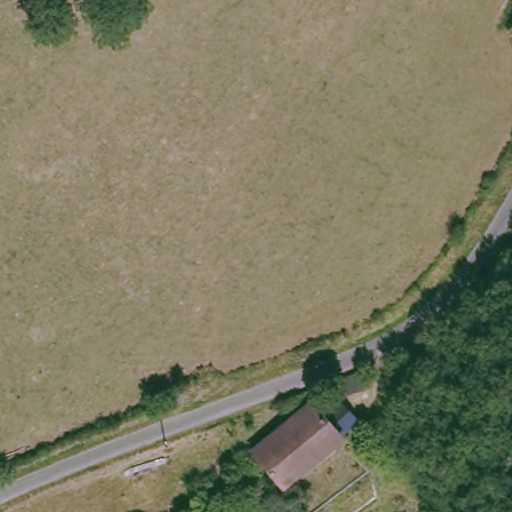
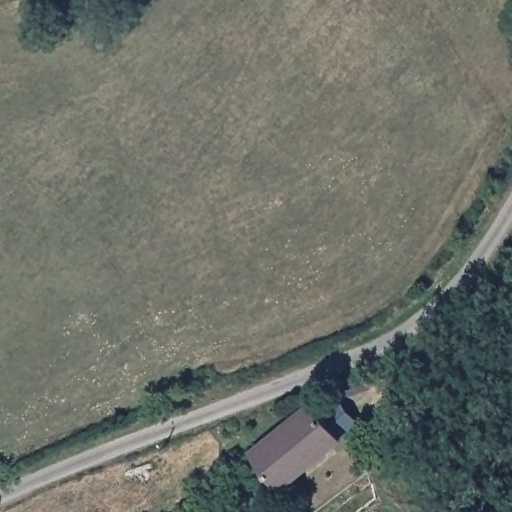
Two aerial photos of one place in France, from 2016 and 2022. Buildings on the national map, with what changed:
unchanged [(251,458),(302,401),(309,407),(325,389),(345,406),(330,424),(280,482),(251,458)]

